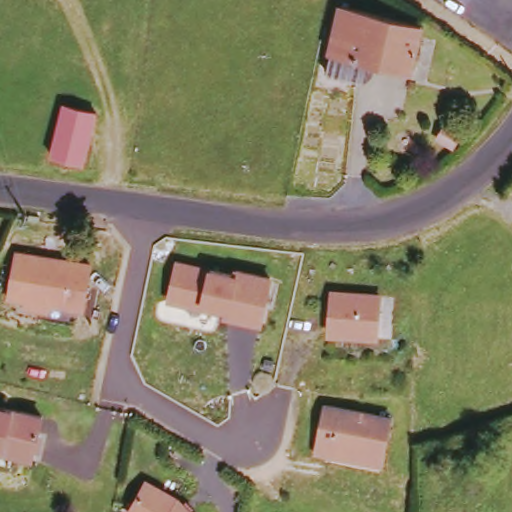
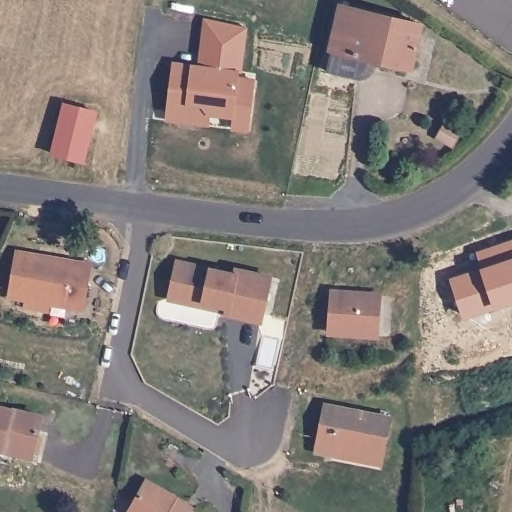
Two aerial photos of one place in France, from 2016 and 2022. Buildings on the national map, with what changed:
unchanged [(414,65),(379,59),(374,70),(366,76),(332,70),(345,5),(421,22),(414,65)]
new [(233,131),(234,119),(209,115),(208,126),(166,121),(172,64),(198,65),(205,20),(248,27),(239,76),(256,79),(249,133),(233,131)]
unchanged [(64,109),(99,118),(87,165),(51,155),(64,109)]
unchanged [(10,304),(11,296),(21,255),(92,270),(82,313),(50,305),(47,311),(10,304)]
unchanged [(260,324),(226,315),(227,308),(204,303),(204,305),(170,297),(179,261),(236,276),(238,272),(271,280),(260,324)]
unchanged [(379,341),(332,336),(337,296),(383,300),(379,341)]
unchanged [(337,458),(319,455),(329,407),(395,421),(389,456),(386,468),(337,458)]
unchanged [(32,457),(0,449),(0,410),(40,420),(32,457)]
unchanged [(193,512),(135,512),(133,511),(148,481),(175,495),(193,512)]

